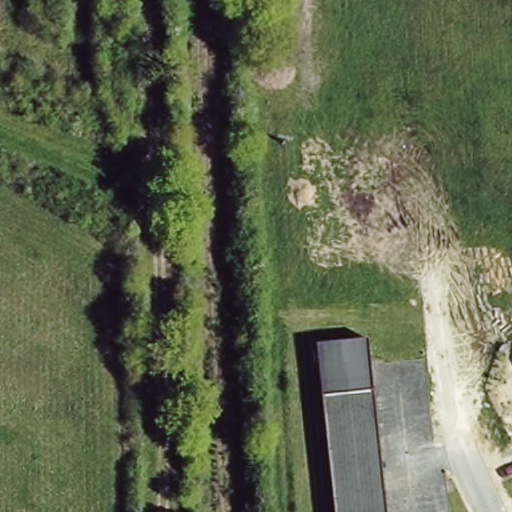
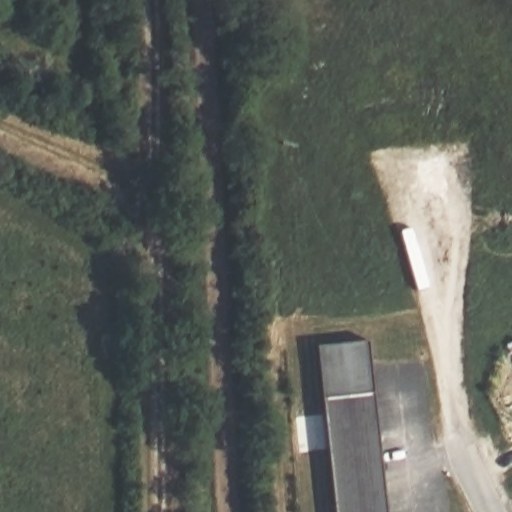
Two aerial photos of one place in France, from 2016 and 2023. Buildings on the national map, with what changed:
unchanged [(313,359),(311,342),(372,336),(374,353),(377,388),(316,394),(313,359)]
unchanged [(377,388),(389,512),(328,512),(316,394),(377,388)]

